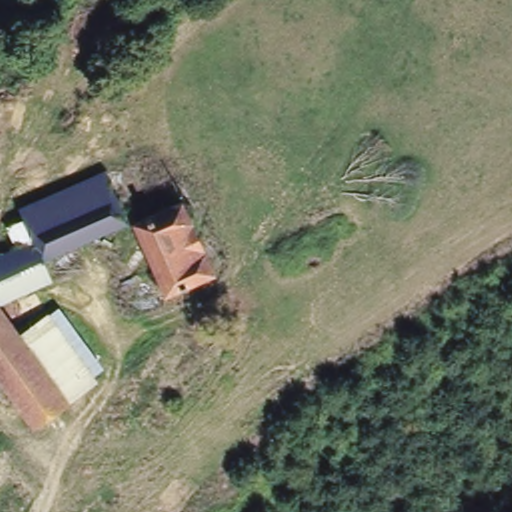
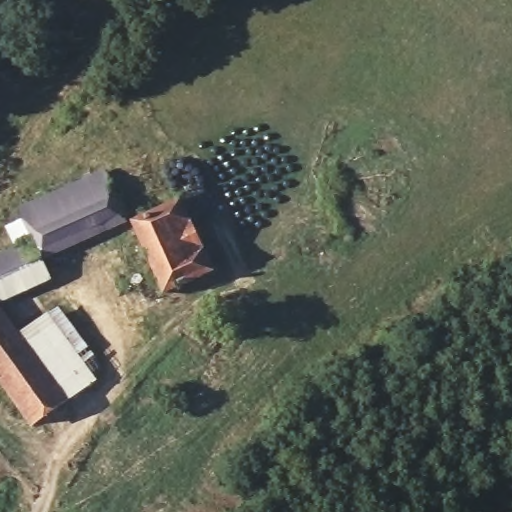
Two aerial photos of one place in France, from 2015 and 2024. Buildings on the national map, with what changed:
unchanged [(127,212),(0,273),(0,247),(38,230),(25,199),(105,162),(127,212)]
unchanged [(167,284),(134,213),(182,192),(217,269),(167,284)]
unchanged [(40,254),(52,280),(2,303),(0,300),(0,273),(40,254)]
unchanged [(2,303),(32,347),(0,366),(0,300),(2,303)]
unchanged [(48,312),(50,314),(59,307),(104,368),(93,375),(98,381),(70,402),(32,347),(22,331),(48,312)]
unchanged [(70,402),(33,424),(0,375),(0,366),(32,347),(70,402)]

